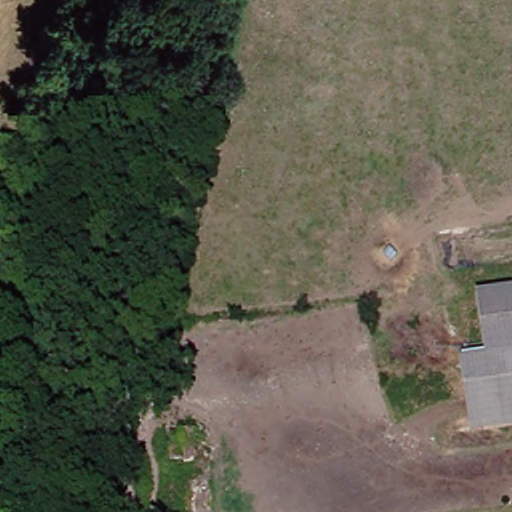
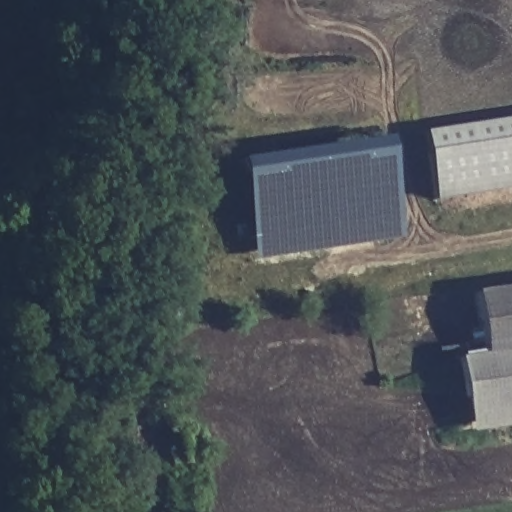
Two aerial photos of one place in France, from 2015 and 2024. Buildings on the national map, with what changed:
new [(512,118),(512,189),(434,201),(423,132),(512,118)]
new [(236,162),(387,139),(403,238),(253,260),(236,162)]
unchanged [(487,322),(481,295),(512,289),(512,316),(487,322)]
unchanged [(493,348),(487,322),(512,316),(512,344),(493,348)]
unchanged [(494,432),(489,433),(473,357),(493,348),(512,344),(512,428),(494,432)]
new [(489,433),(469,436),(456,358),(473,357),(489,433)]
unchanged [(151,437),(165,436),(162,428),(185,426),(188,458),(165,460),(165,453),(155,456),(151,437)]

